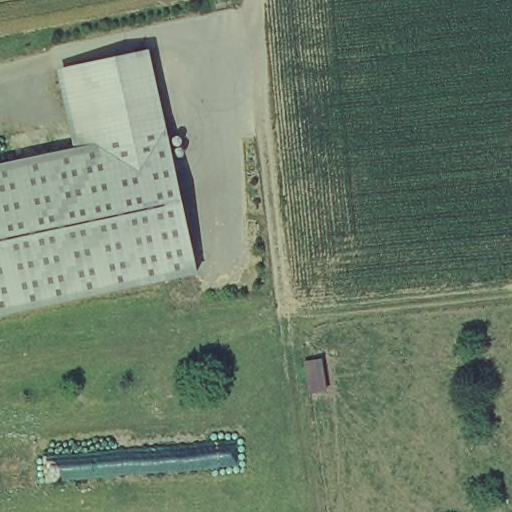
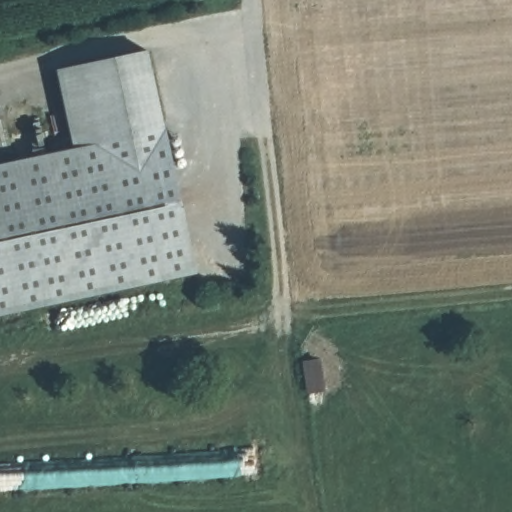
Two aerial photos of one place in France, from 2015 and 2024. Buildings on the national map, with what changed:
unchanged [(201,275),(0,319),(0,166),(76,150),(60,70),(150,49),(201,275)]

